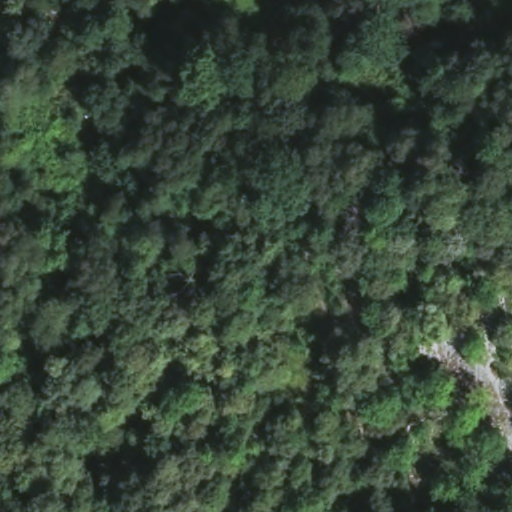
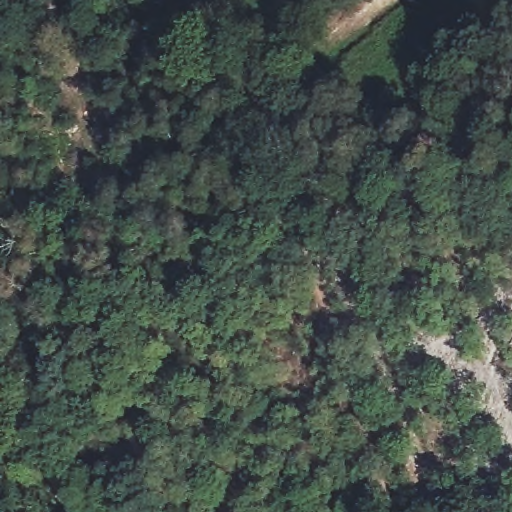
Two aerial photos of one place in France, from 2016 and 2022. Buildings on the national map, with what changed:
unchanged [(35,7),(33,0),(68,0),(69,2),(35,7)]

